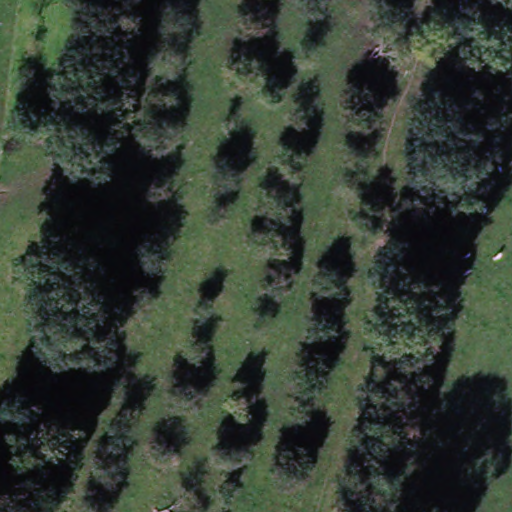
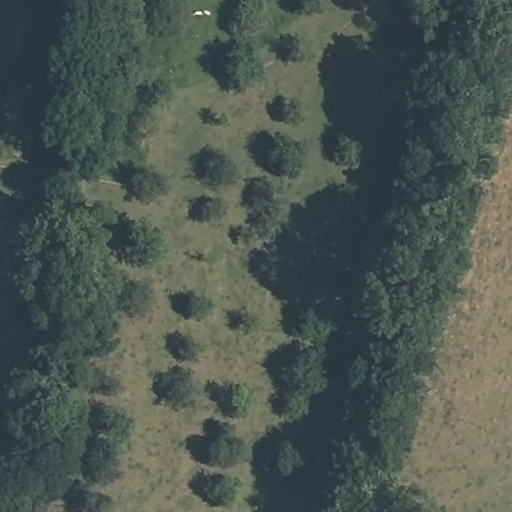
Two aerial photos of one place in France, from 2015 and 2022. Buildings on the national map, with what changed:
unchanged [(68,149),(57,148),(61,126),(71,127),(68,149)]

